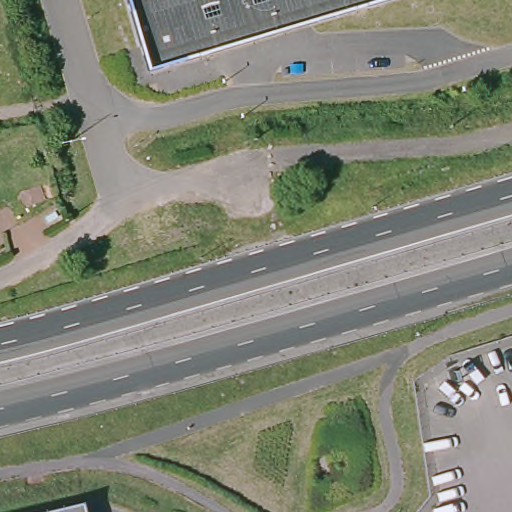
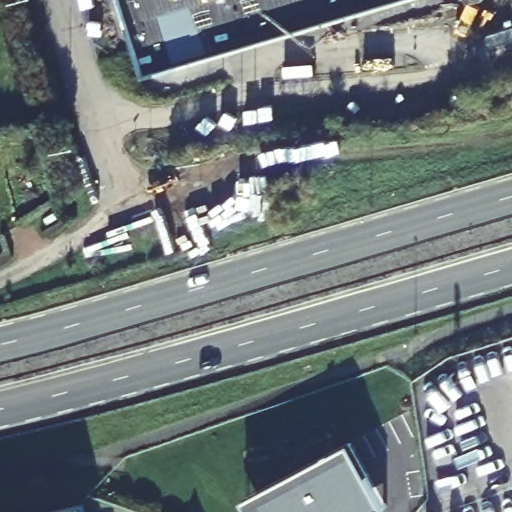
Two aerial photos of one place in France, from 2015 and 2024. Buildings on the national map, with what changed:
unchanged [(119,0),(376,0),(139,68),(119,0)]
unchanged [(52,212),(55,218),(45,224),(41,218),(52,212)]
new [(239,485),(346,428),(380,493),(360,504),(342,471),(321,482),(315,471),(302,478),(308,489),(276,506),(279,512),(253,512),(239,485)]
new [(276,506),(308,489),(302,478),(315,471),(321,482),(342,471),(360,504),(345,512),(279,512),(276,506)]
unchanged [(83,512),(37,512),(81,502),(83,512)]

